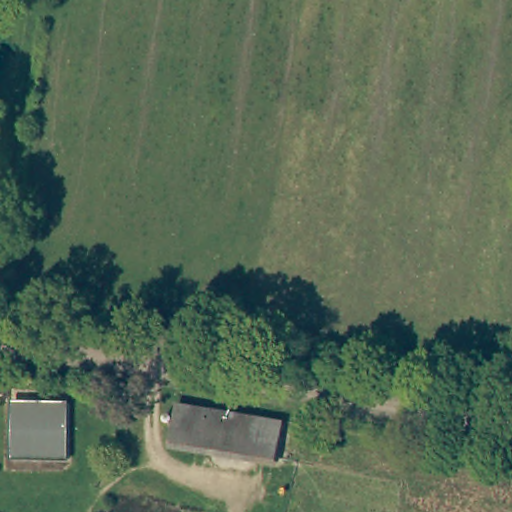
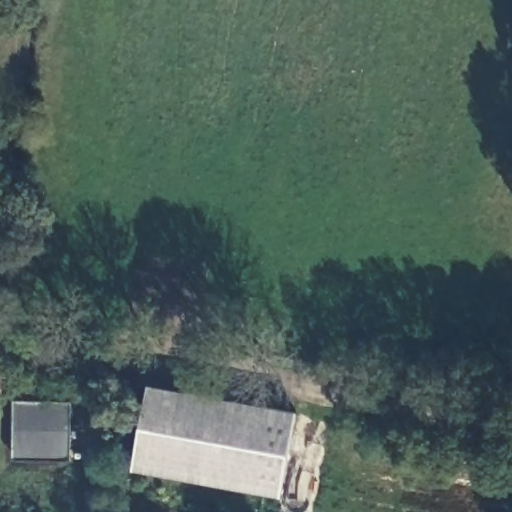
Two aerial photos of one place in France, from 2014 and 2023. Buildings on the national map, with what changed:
new [(132,470),(148,385),(296,412),(280,497),(132,470)]
unchanged [(66,399),(63,454),(8,451),(11,396),(66,399)]
demolished [(284,420),(277,468),(169,449),(177,402),(284,420)]

